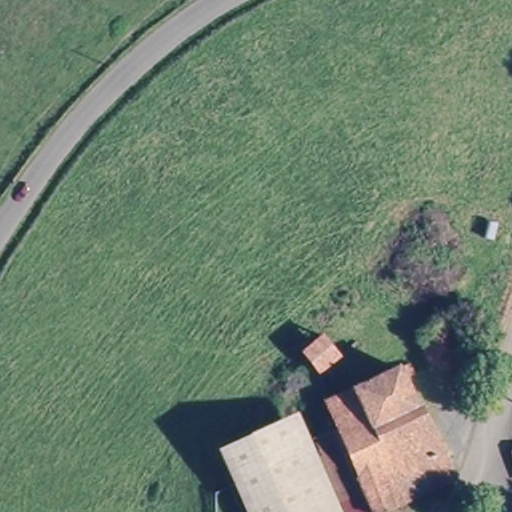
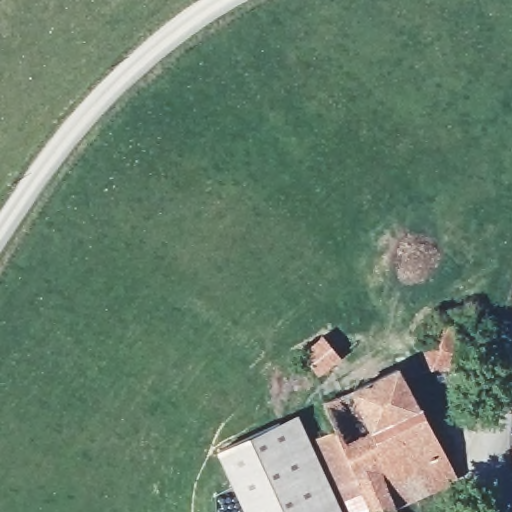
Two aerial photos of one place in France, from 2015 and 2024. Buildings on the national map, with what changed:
unchanged [(454,321),(468,355),(439,368),(432,352),(425,334),(454,321)]
unchanged [(308,356),(302,348),(321,334),(325,338),(338,355),(319,369),(308,356)]
unchanged [(332,436),(332,435),(354,425),(342,399),(417,367),(465,479),(399,508),(390,512),(366,512),(361,502),(332,436)]
unchanged [(297,418),(339,512),(317,512),(279,427),(297,418)]
unchanged [(219,453),(250,439),(279,427),(317,512),(245,512),(225,467),(219,453)]

